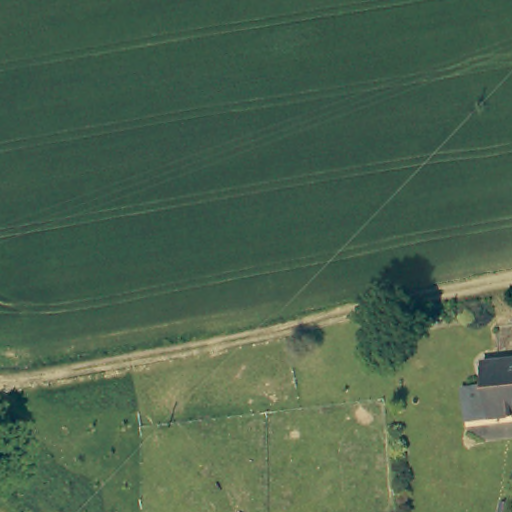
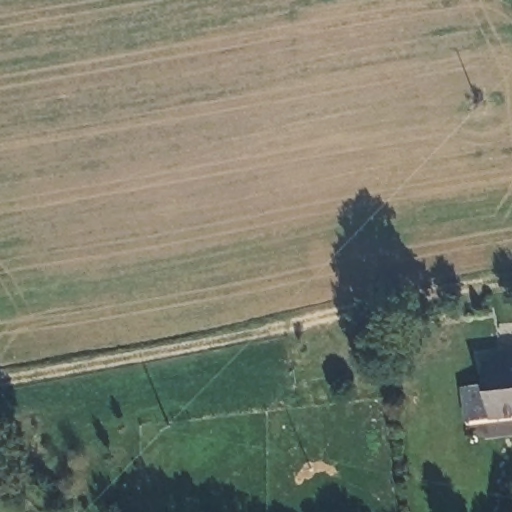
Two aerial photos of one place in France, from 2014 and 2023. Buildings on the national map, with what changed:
unchanged [(487,383),(483,360),(512,358),(512,414),(492,416),(492,415),(470,417),(466,385),(487,383)]

